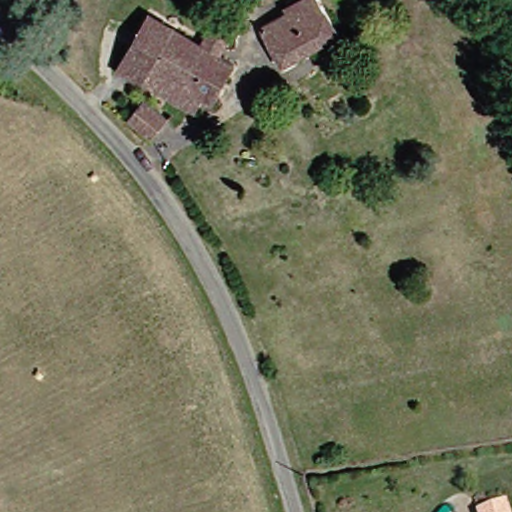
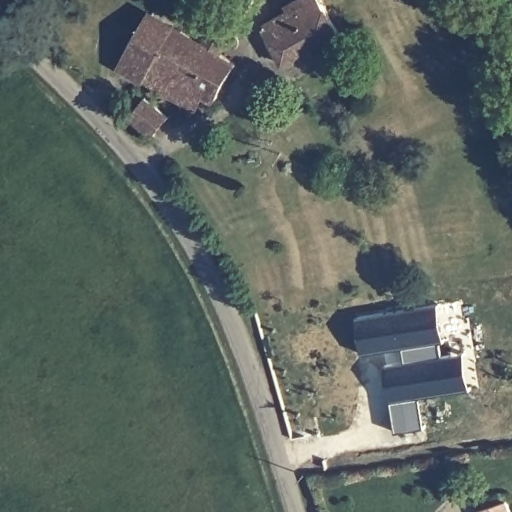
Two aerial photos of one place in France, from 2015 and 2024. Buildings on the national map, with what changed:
unchanged [(153,88),(183,29),(192,34),(204,42),(228,0),(245,0),(248,2),(231,31),(227,28),(214,48),(231,59),(209,95),(198,89),(189,108),(157,90),(153,88)]
unchanged [(316,0),(335,33),(281,64),(259,29),(287,14),(284,9),(299,0),(316,0)]
unchanged [(162,19),(133,77),(109,64),(140,9),(162,19)]
unchanged [(133,77),(162,19),(183,29),(153,88),(133,77)]
unchanged [(132,115),(145,99),(153,106),(167,119),(152,138),(143,127),(132,115)]
new [(419,398),(423,427),(397,433),(392,403),(395,402),(389,369),(413,365),(410,347),(366,354),(360,320),(437,307),(443,357),(462,353),(467,389),(419,398)]
unchanged [(481,507),(511,498),(512,503),(512,512),(482,512),(481,507)]

